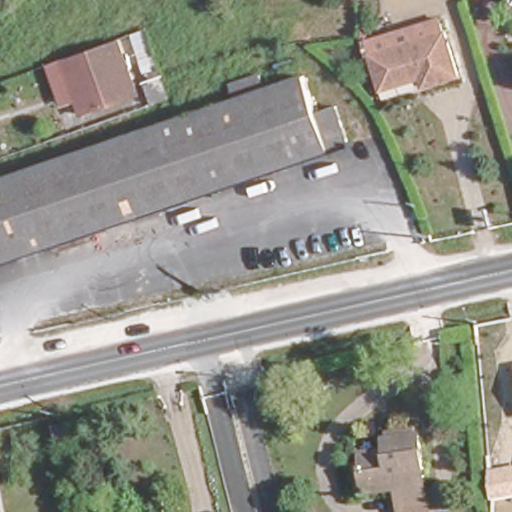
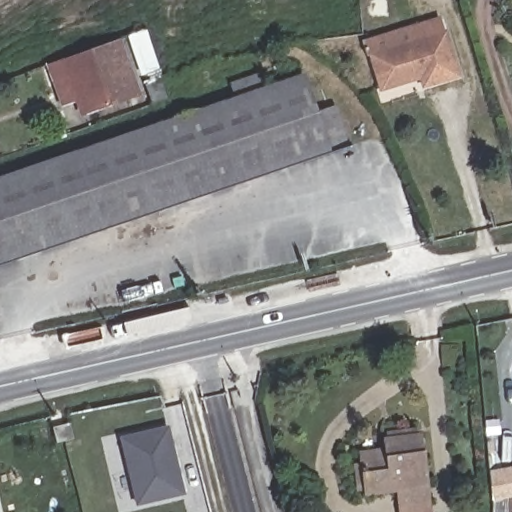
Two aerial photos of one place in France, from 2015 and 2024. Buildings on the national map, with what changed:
unchanged [(361,43),(442,21),(446,36),(365,58),(361,43)]
unchanged [(127,36),(142,79),(130,83),(94,96),(99,110),(79,117),(59,61),(116,40),(127,36)]
unchanged [(446,36),(458,81),(420,91),(417,81),(375,93),(365,58),(446,36)]
unchanged [(233,86),(262,77),(268,92),(306,79),(319,117),(339,110),(351,147),(332,153),(308,161),(0,265),(0,183),(238,102),(233,86)]
unchanged [(166,101),(150,107),(143,85),(159,79),(166,101)]
new [(134,506),(118,436),(169,424),(184,494),(134,506)]
unchanged [(353,464),(361,463),(360,453),(383,449),(383,440),(386,440),(385,431),(416,427),(418,437),(421,436),(429,503),(401,506),(398,492),(365,495),(365,490),(356,491),(353,464)]
unchanged [(73,428),(78,447),(60,453),(55,433),(73,428)]
unchanged [(490,500),(488,470),(512,466),(512,496),(490,500)]

